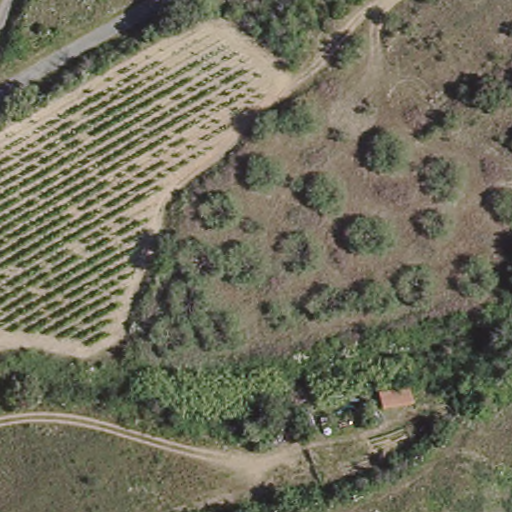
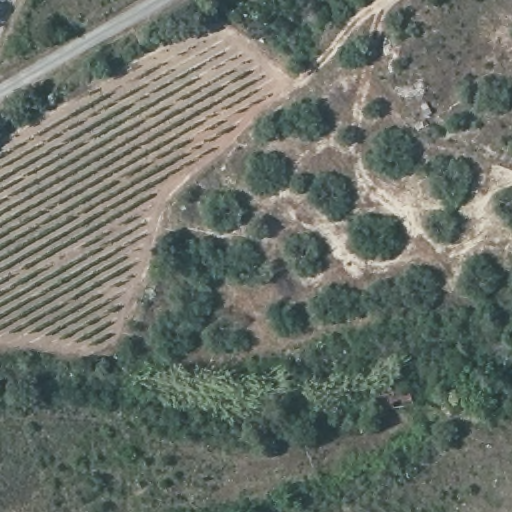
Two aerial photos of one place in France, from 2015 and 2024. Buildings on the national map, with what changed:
unchanged [(414,381),(417,401),(383,410),(380,388),(414,381)]

